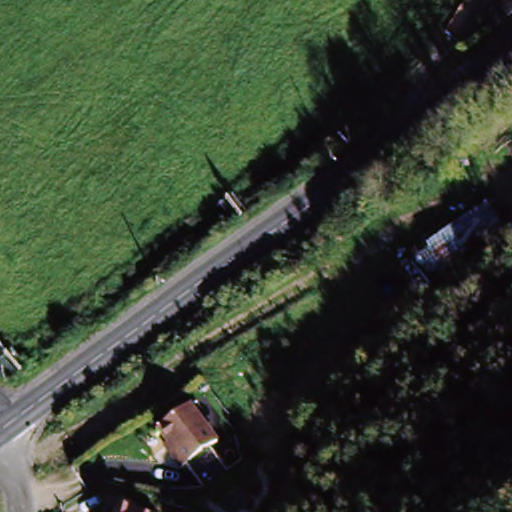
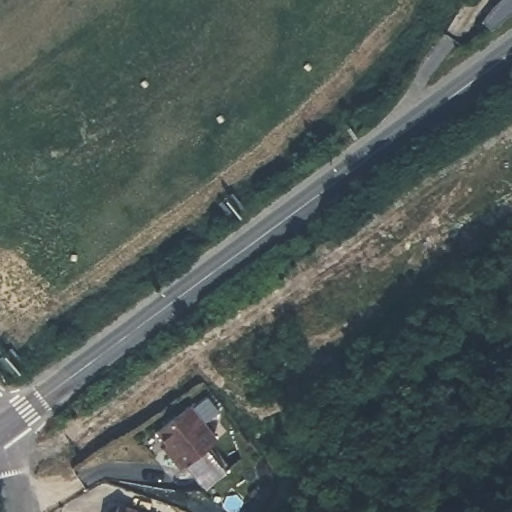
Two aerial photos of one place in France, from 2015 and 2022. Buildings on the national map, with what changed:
unchanged [(478,21),(503,0),(512,0),(512,6),(511,7),(512,8),(512,9),(485,31),(478,21)]
unchanged [(443,269),(420,241),(460,213),(480,239),(443,269)]
unchanged [(164,445),(153,431),(184,406),(212,440),(178,469),(167,456),(160,448),(164,445)]
unchanged [(133,512),(113,512),(115,506),(133,512)]

